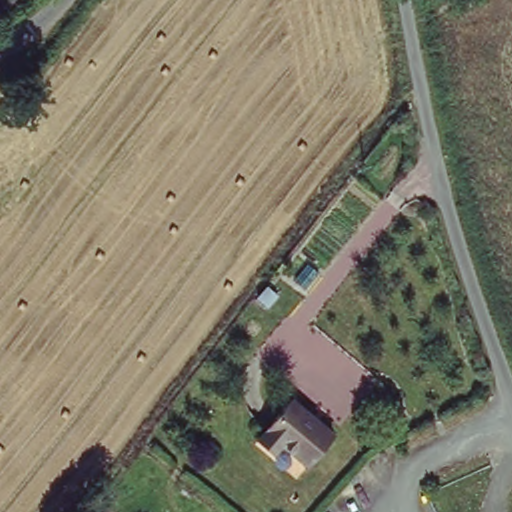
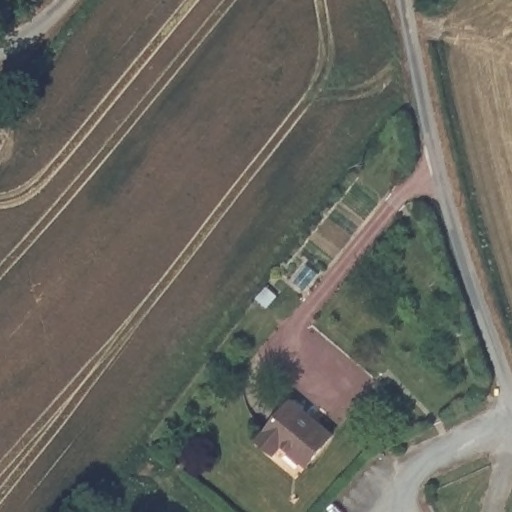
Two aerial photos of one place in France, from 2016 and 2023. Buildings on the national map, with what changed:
unchanged [(288,395),(330,429),(307,460),(281,439),(271,451),(254,438),(288,395)]

